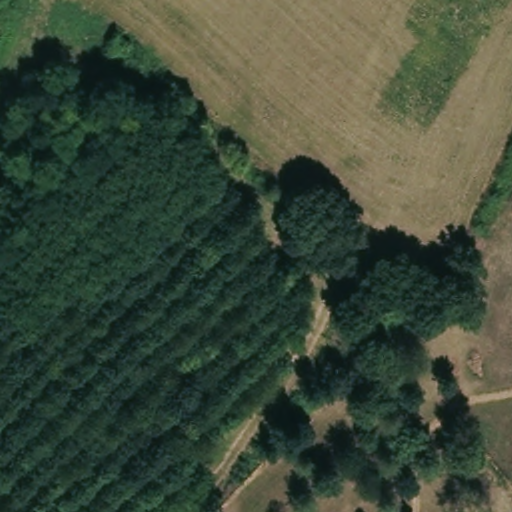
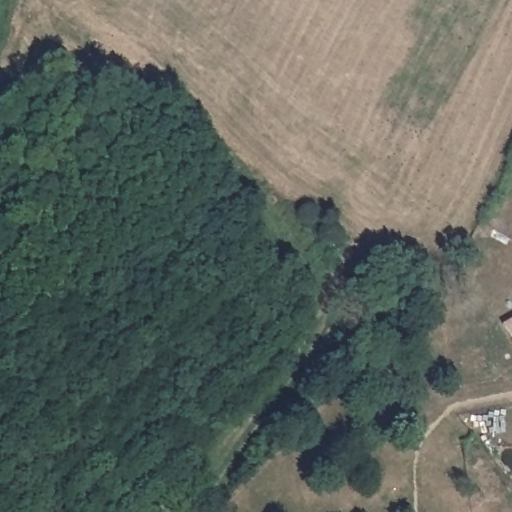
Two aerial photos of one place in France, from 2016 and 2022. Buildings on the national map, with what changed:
new [(502,324),(512,319),(512,342),(502,324)]

